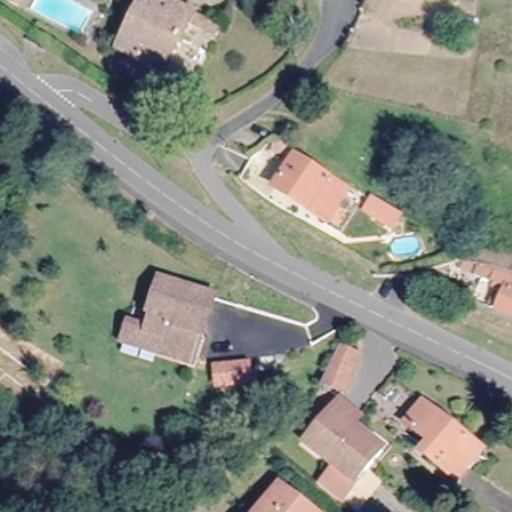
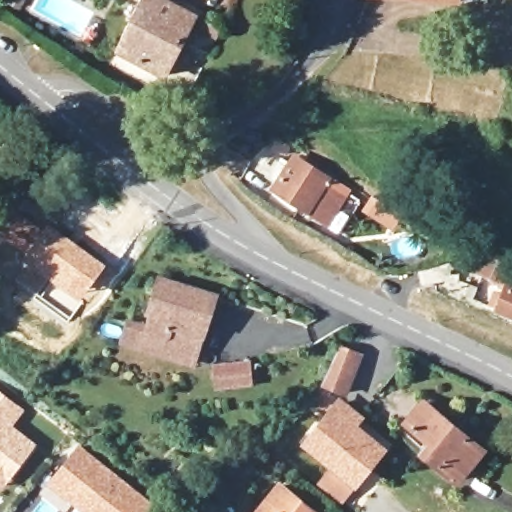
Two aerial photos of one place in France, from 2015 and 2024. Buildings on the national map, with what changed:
unchanged [(23,4),(19,11),(10,7),(14,0),(15,0),(23,4)]
unchanged [(233,25),(229,32),(204,19),(177,71),(129,47),(152,0),(184,0),(233,25)]
unchanged [(317,198),(310,207),(278,185),(296,158),(347,192),(336,211),(317,198)]
new [(18,249),(16,251),(0,242),(7,230),(10,232),(24,214),(34,219),(36,220),(39,216),(46,221),(107,264),(73,312),(59,301),(61,298),(67,302),(72,296),(21,259),(24,254),(18,249)]
unchanged [(477,294),(484,297),(487,291),(473,286),(474,282),(465,278),(471,264),(512,280),(512,323),(479,310),(472,307),(477,294)]
unchanged [(182,358),(163,352),(129,341),(134,326),(153,332),(158,313),(156,312),(166,280),(220,297),(214,314),(210,328),(200,359),(198,364),(182,358)]
unchanged [(335,347),(356,357),(340,391),(319,381),(335,347)]
unchanged [(211,368),(239,366),(244,365),(245,383),(240,383),(213,386),(211,368)]
unchanged [(324,484),(336,469),(309,448),(331,420),(305,399),(317,385),(361,421),(355,429),(384,453),(356,486),(344,501),(324,484)]
new [(8,423),(31,442),(14,463),(0,481),(0,392),(20,407),(8,423)]
unchanged [(425,452),(433,442),(409,423),(426,402),(483,448),(458,479),(425,452)]
new [(71,493),(52,477),(61,466),(78,446),(74,443),(75,442),(148,502),(140,512),(94,512),(87,506),(71,493)]
unchanged [(314,512),(260,512),(282,485),(314,512)]

